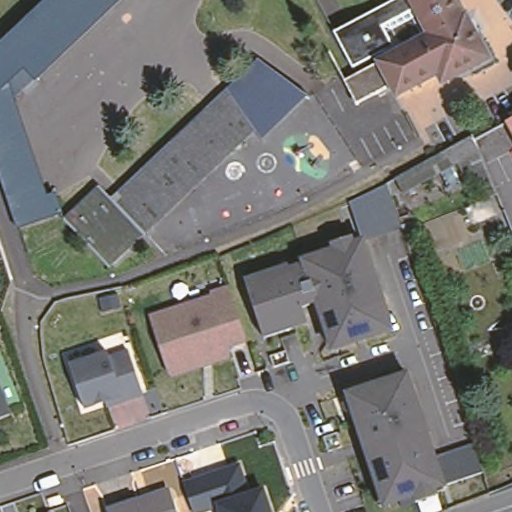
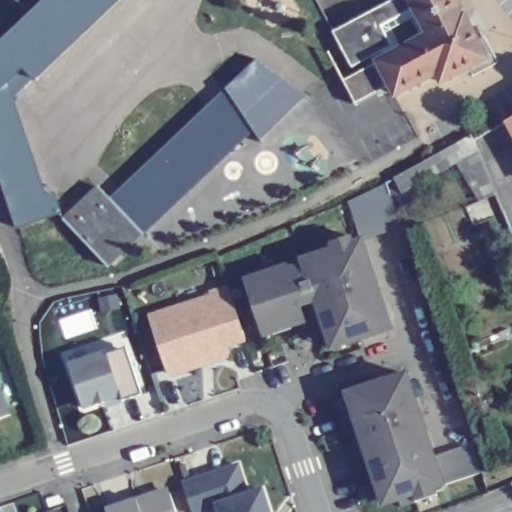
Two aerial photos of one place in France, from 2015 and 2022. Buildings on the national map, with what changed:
unchanged [(4,30),(37,0),(110,0),(32,73),(19,59),(3,74),(42,189),(49,188),(54,205),(30,214),(10,220),(4,202),(0,191),(0,34),(4,30)]
unchanged [(413,12),(394,22),(405,44),(379,58),(375,51),(354,63),(335,28),(386,0),(414,0),(430,29),(424,33),(413,12)]
unchanged [(465,10),(488,53),(444,77),(439,69),(397,91),(392,81),(379,58),(405,44),(424,33),(430,29),(414,0),(456,0),(462,11),(465,10)]
unchanged [(379,58),(392,81),(357,101),(344,78),(379,58)]
unchanged [(92,184),(104,197),(257,64),(297,98),(271,124),(251,138),(248,134),(97,264),(55,215),(92,184)]
unchanged [(512,117),(512,130),(507,120),(512,117)]
unchanged [(460,161),(454,164),(402,194),(395,179),(396,179),(446,150),(472,136),(477,151),(494,194),(484,203),(460,161)]
unchanged [(350,204),(388,185),(402,229),(364,242),(363,242),(350,204)]
unchanged [(329,334),(319,304),(304,309),(309,324),(293,329),(269,338),(265,339),(262,332),(246,281),(252,279),(290,267),(290,269),(305,264),(305,262),(333,252),(331,245),(352,238),(355,245),(363,242),(364,242),(375,273),(370,274),(389,332),(345,347),(334,351),(329,334)]
unchanged [(232,295),(247,342),(230,347),(232,351),(230,358),(217,362),(212,357),(188,365),(187,373),(174,377),(169,372),(152,319),(214,299),(212,295),(230,289),(232,295)]
unchanged [(102,399),(81,406),(67,364),(105,351),(107,355),(125,349),(140,391),(119,398),(103,404),(102,399)]
unchanged [(419,499),(417,492),(390,501),(385,484),(381,486),(349,390),(409,371),(437,454),(440,466),(437,467),(442,483),(438,484),(440,492),(419,499)]
unchanged [(7,419),(0,421),(0,401),(7,419)]
unchanged [(476,440),(485,469),(442,483),(437,467),(440,466),(437,454),(476,440)]
unchanged [(239,464),(245,491),(264,487),(272,512),(217,512),(217,509),(209,512),(192,512),(182,483),(239,464)]
unchanged [(134,502),(136,506),(147,503),(150,497),(162,493),(168,496),(174,512),(104,512),(134,502)]
unchanged [(66,504),(69,511),(66,512),(56,512),(55,508),(66,504)]

